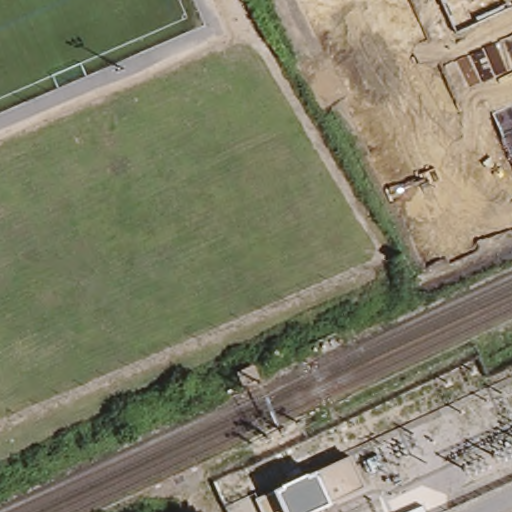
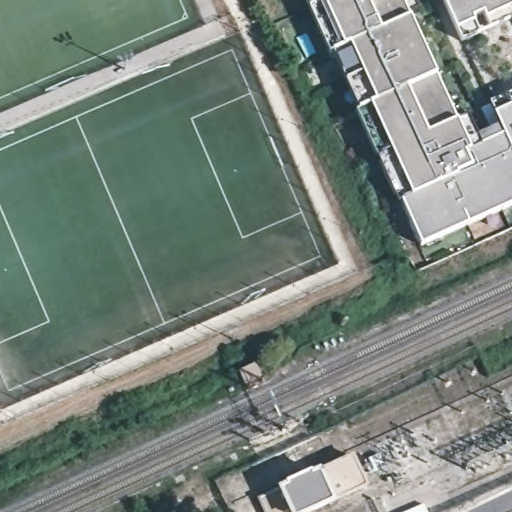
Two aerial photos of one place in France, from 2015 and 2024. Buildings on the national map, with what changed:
new [(504,137),(512,155),(512,203),(420,245),(307,0),(401,0),(469,153),(504,137)]
demolished [(383,0),(412,0),(392,13),(383,0)]
new [(512,18),(460,42),(442,0),(512,0),(512,18)]
new [(490,105),(512,95),(512,155),(504,137),(490,105)]
unchanged [(259,376),(246,382),(241,371),(255,365),(259,376)]
unchanged [(292,486),(291,482),(315,471),(317,474),(357,455),(371,485),(333,502),(311,512),(270,512),(264,498),(292,486)]
unchanged [(414,512),(408,512),(413,510),(414,512)]

